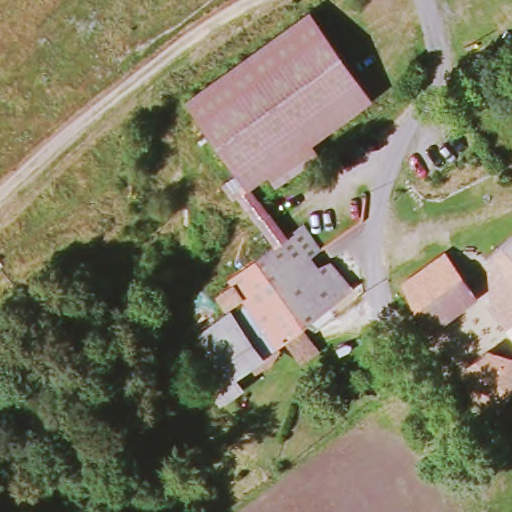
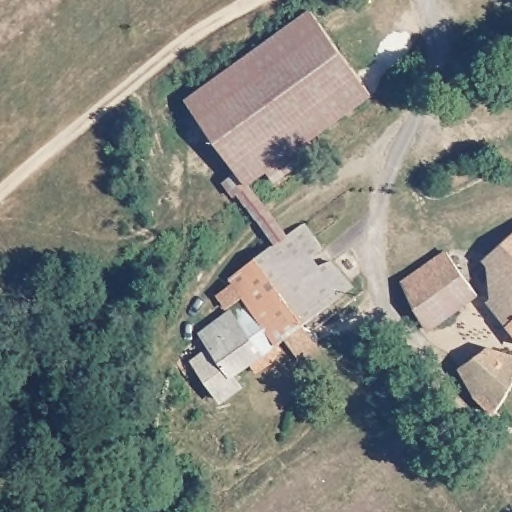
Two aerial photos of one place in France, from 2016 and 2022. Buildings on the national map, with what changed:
unchanged [(311,15),(368,105),(304,146),(309,157),(268,183),(261,172),(240,186),(182,98),(311,15)]
unchanged [(316,250),(290,268),(300,281),(324,263),(346,292),(225,383),(233,398),(215,408),(189,369),(208,356),(195,335),(240,307),(225,282),(297,224),(316,250)]
unchanged [(490,313),(476,298),(459,278),(512,231),(512,338),(490,313)]
unchanged [(429,265),(440,257),(456,281),(472,302),(426,333),(398,286),(429,265)]
unchanged [(512,362),(512,378),(509,376),(485,408),(457,368),(479,350),(512,362)]

